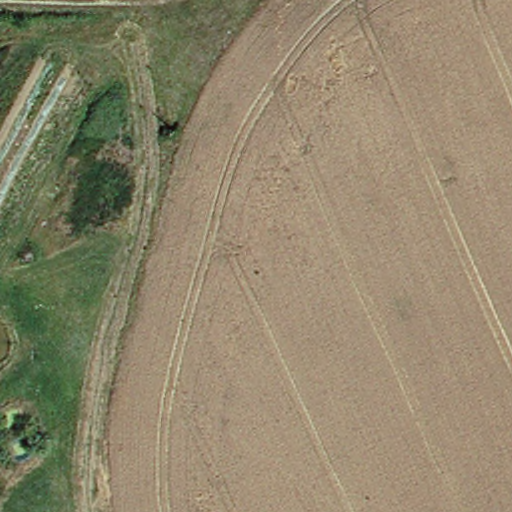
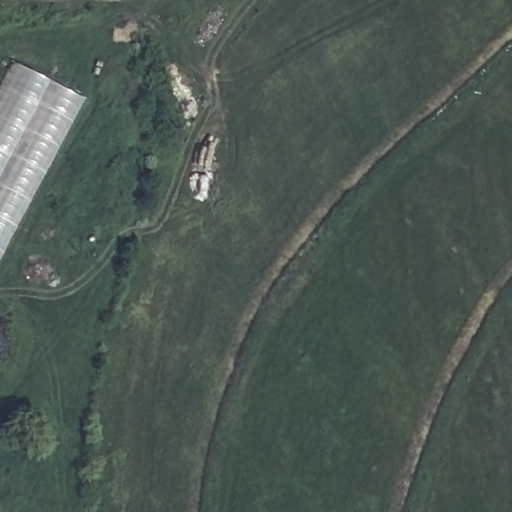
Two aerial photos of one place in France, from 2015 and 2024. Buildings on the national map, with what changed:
new [(0,261),(0,88),(13,63),(84,99),(0,261)]

